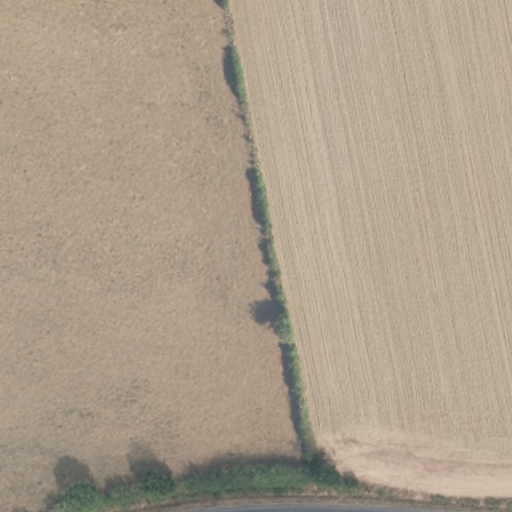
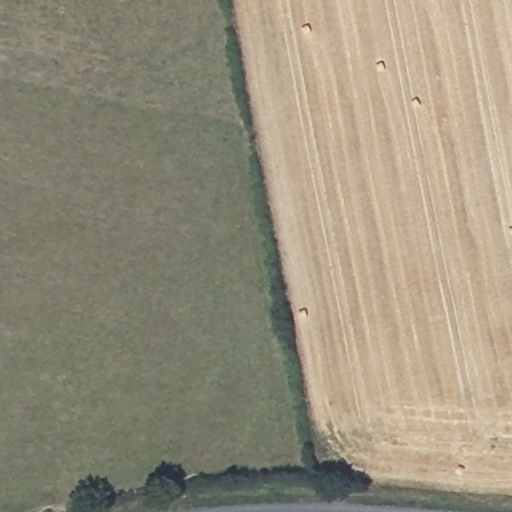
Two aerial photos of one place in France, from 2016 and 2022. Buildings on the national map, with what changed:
[]

